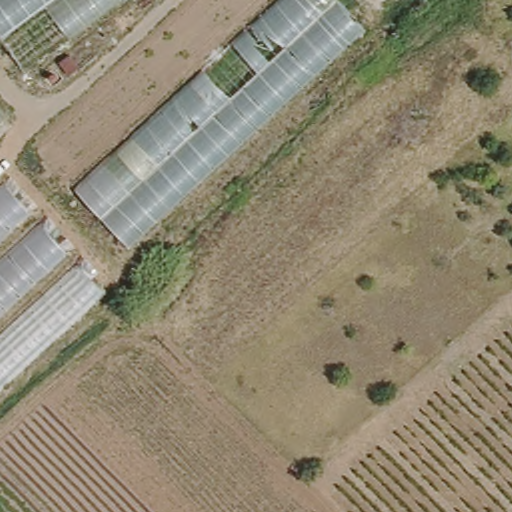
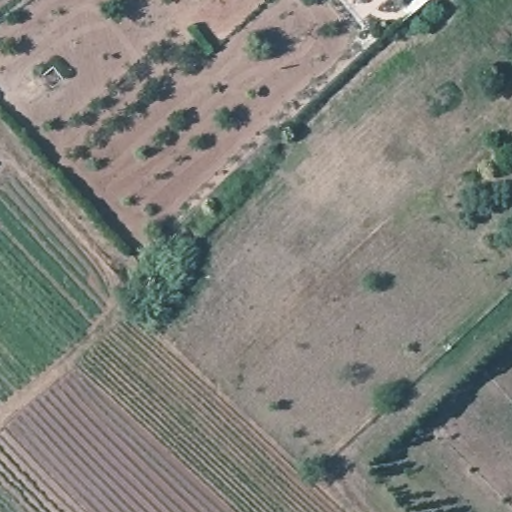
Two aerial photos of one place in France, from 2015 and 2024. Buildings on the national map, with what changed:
demolished [(28,77),(0,35),(0,0),(131,0),(28,77)]
demolished [(365,31),(132,245),(32,149),(198,0),(334,0),(365,31)]
demolished [(5,117),(0,122),(0,112),(5,117)]
demolished [(0,390),(0,186),(6,180),(105,293),(0,390)]

